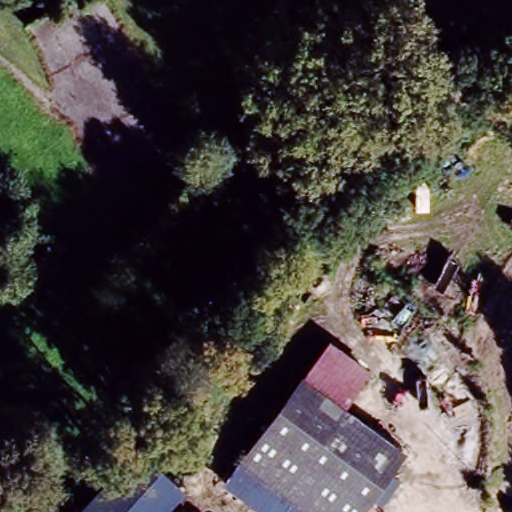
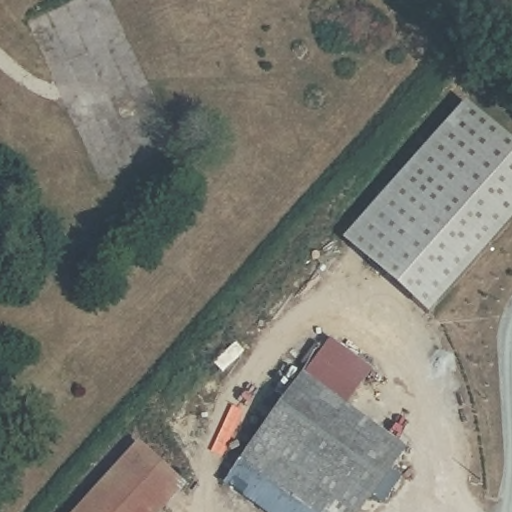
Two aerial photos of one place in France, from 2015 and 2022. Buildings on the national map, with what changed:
new [(423,312),(339,237),(460,102),(512,148),(512,213),(423,312)]
demolished [(194,259),(225,224),(240,239),(209,273),(194,259)]
demolished [(312,288),(331,305),(280,366),(260,349),(312,288)]
unchanged [(370,367),(341,410),(298,377),(330,337),(370,367)]
unchanged [(400,454),(378,484),(356,512),(267,512),(230,481),(275,409),(298,377),(400,454)]
unchanged [(185,490),(165,512),(79,512),(140,450),(185,490)]

